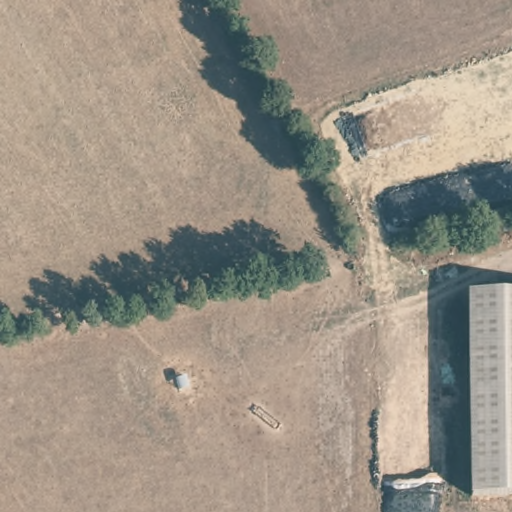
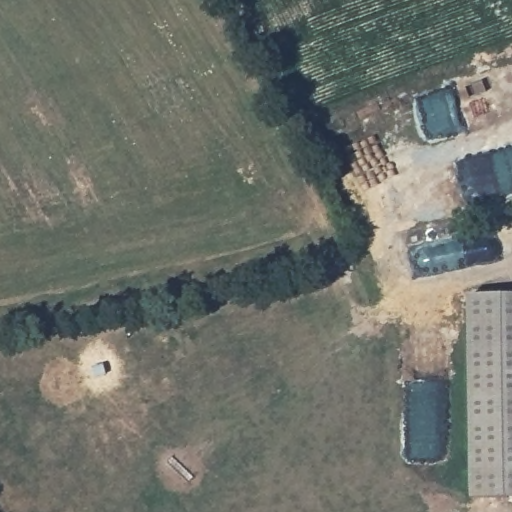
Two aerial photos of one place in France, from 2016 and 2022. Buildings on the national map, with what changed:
unchanged [(512,496),(472,496),(468,296),(512,296),(512,496)]

